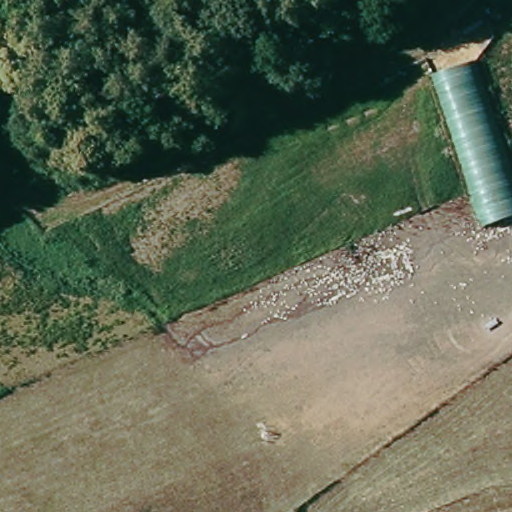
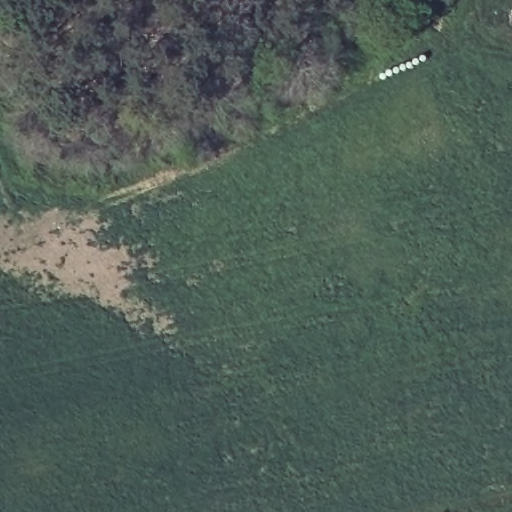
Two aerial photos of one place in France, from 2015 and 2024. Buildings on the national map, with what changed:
demolished [(512,168),(512,217),(484,226),(433,76),(477,61),(512,168)]

